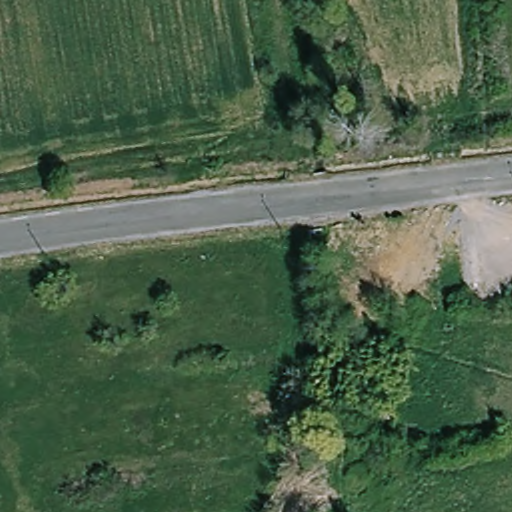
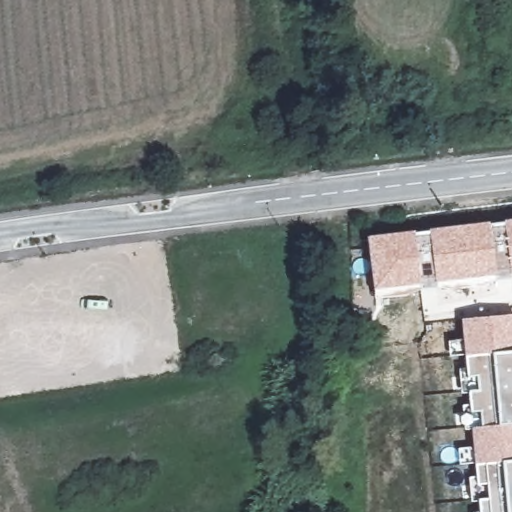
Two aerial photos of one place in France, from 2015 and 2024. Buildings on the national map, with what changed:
new [(512,277),(493,281),(482,286),(453,289),(445,288),(436,288),(435,287),(421,289),(407,294),(375,297),(373,291),(367,237),(413,232),(414,236),(428,235),(428,230),(488,222),(489,227),(505,226),(512,277)]
new [(505,223),(512,222),(512,277),(505,223)]
new [(478,511),(477,500),(471,502),(468,476),(475,475),(474,465),(473,462),(459,465),(457,448),(472,447),(470,429),(465,430),(462,405),(469,403),(468,392),(460,393),(459,368),(465,367),(464,357),(464,354),(450,356),(448,342),(463,339),(461,320),(512,315),(512,512),(474,512),(478,511)]
demolished [(92,496),(73,501),(70,486),(90,482),(92,496)]

